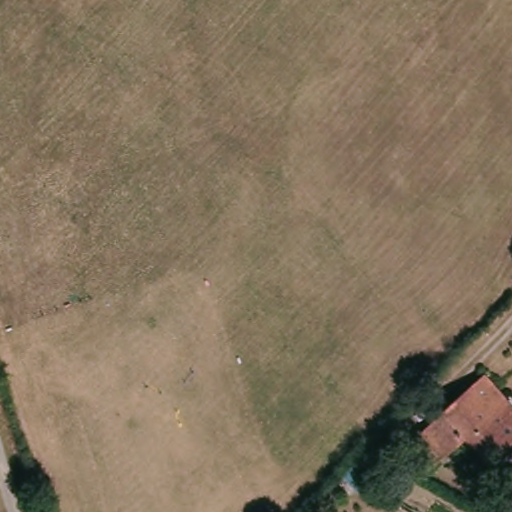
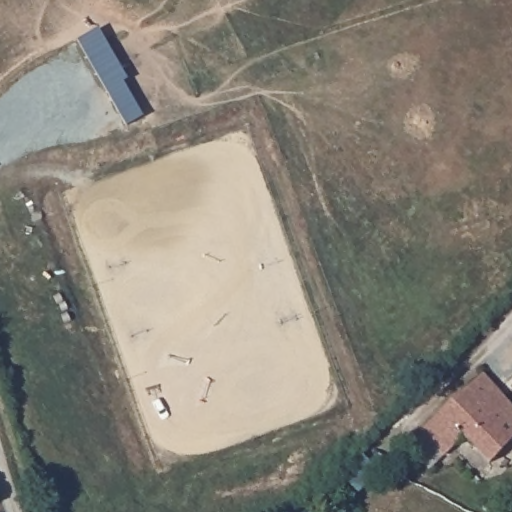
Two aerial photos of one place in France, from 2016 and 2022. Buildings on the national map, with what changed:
new [(76,40),(98,28),(128,79),(124,81),(143,115),(126,125),(76,40)]
unchanged [(406,439),(421,426),(441,407),(440,406),(483,368),(512,400),(512,435),(490,459),(463,432),(445,451),(429,464),(406,439)]

